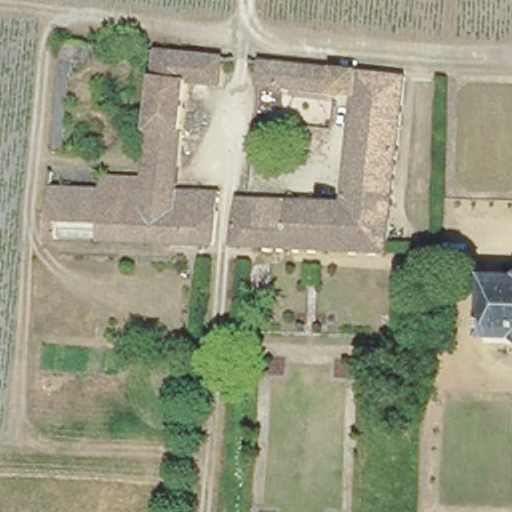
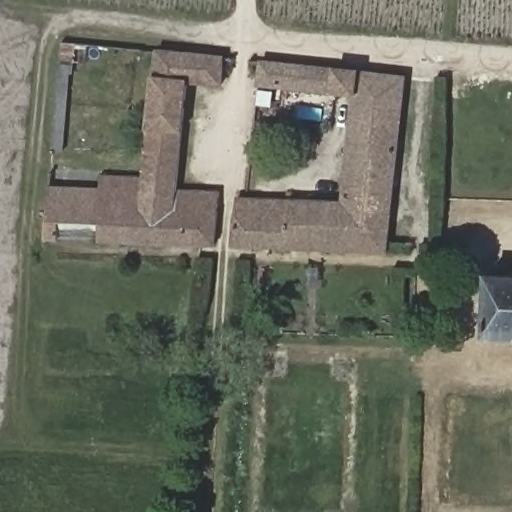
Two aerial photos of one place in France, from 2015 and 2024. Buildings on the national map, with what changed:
unchanged [(77,48),(71,149),(51,147),(59,47),(77,48)]
unchanged [(50,195),(143,201),(145,177),(152,85),(155,56),(224,62),(222,86),(221,90),(186,87),(176,196),(220,199),(215,249),(46,242),(50,195)]
unchanged [(237,197),(344,202),(353,95),(259,86),(262,62),(405,77),(387,251),(233,245),(237,197)]
unchanged [(145,177),(143,201),(50,195),(52,173),(145,177)]
unchanged [(485,278),(512,279),(512,341),(482,340),(485,278)]

